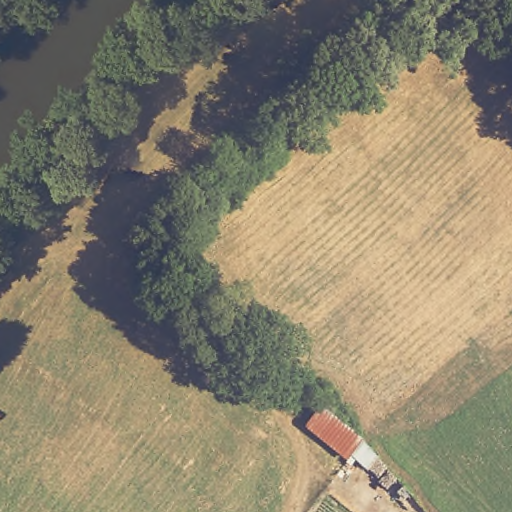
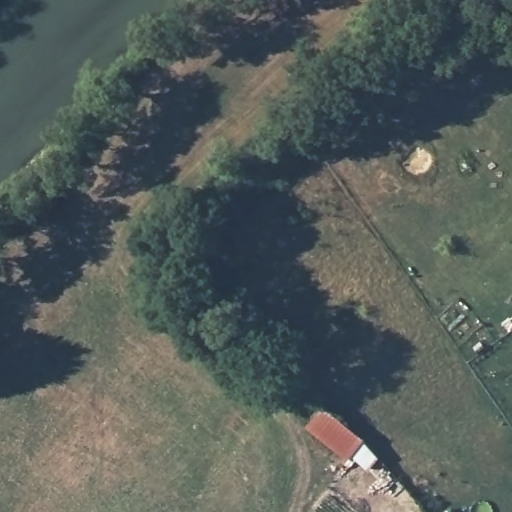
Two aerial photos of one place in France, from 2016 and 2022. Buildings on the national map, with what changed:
unchanged [(359,438),(377,452),(366,466),(348,452),(344,457),(305,427),(320,407),(359,438)]

